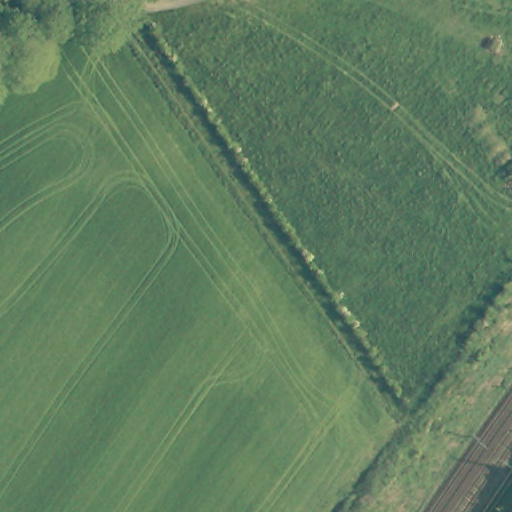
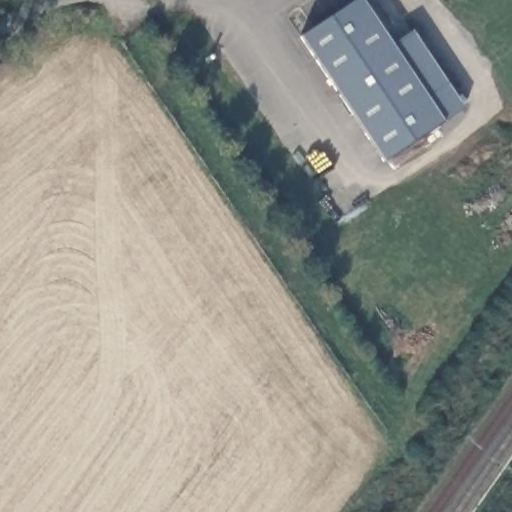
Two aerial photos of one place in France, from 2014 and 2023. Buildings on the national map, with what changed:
new [(353,0),(363,0),(392,44),(413,30),(465,107),(385,161),(300,37),(353,0)]

